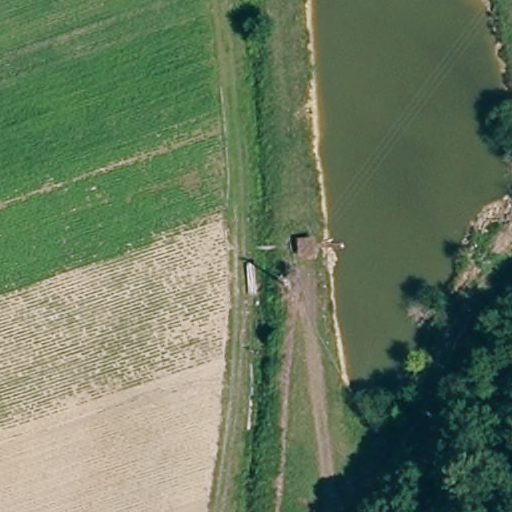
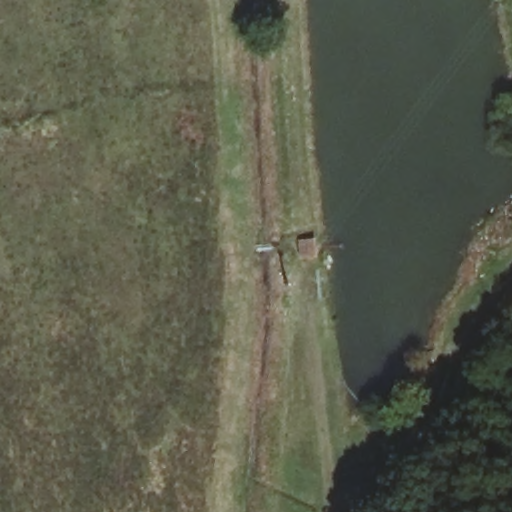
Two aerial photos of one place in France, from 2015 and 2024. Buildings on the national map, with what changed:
unchanged [(333,240),(330,261),(312,258),(314,237),(333,240)]

